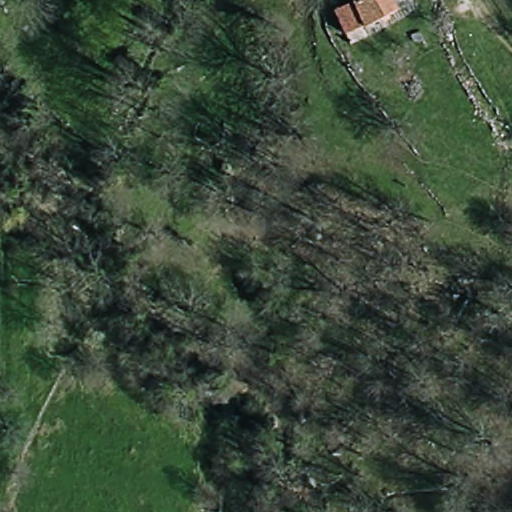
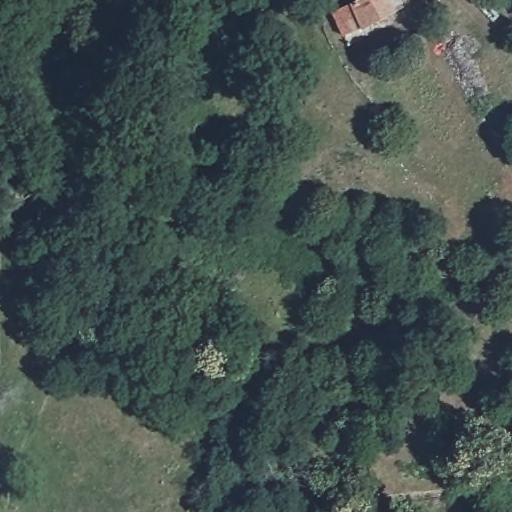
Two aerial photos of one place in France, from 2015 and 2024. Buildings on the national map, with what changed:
unchanged [(353,3),(359,0),(392,0),(400,19),(367,34),(347,44),(333,12),(353,3)]

